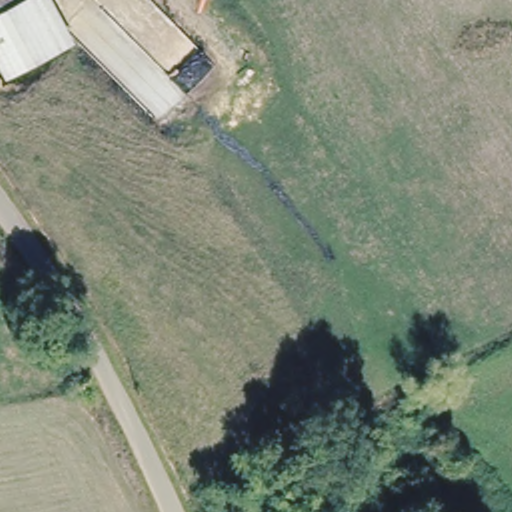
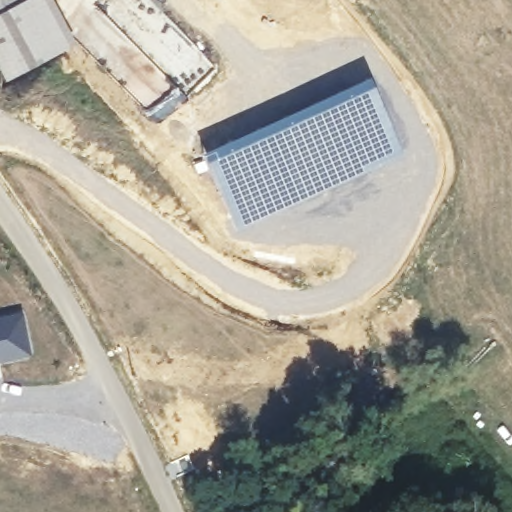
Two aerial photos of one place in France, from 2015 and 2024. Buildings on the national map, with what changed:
demolished [(0,12),(0,0),(23,0),(0,12)]
new [(62,48),(7,77),(0,63),(0,0),(37,0),(62,48)]
new [(209,153),(211,158),(372,85),(404,155),(236,231),(204,155),(209,153)]
new [(22,310),(32,356),(0,363),(0,315),(22,310)]

